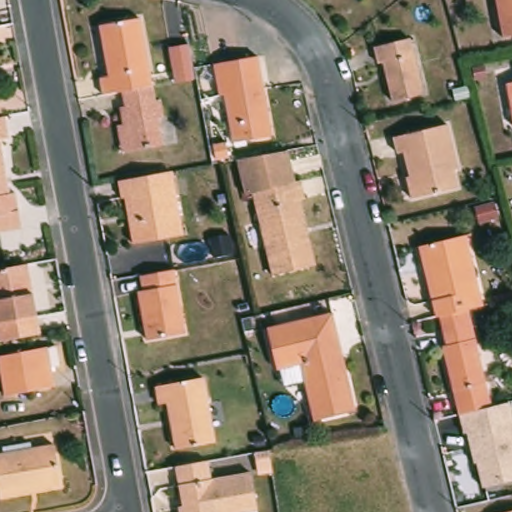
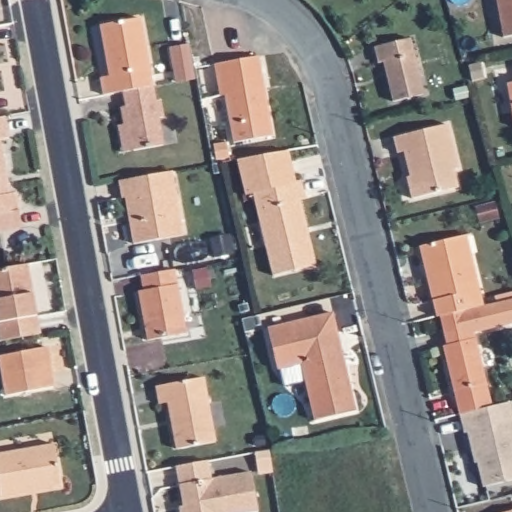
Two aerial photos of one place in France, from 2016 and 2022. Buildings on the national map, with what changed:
unchanged [(497,0),(512,0),(512,39),(505,40),(497,0)]
unchanged [(103,80),(112,78),(101,28),(140,19),(155,86),(126,93),(107,96),(103,80)]
unchanged [(177,81),(170,46),(190,42),(196,77),(177,81)]
unchanged [(395,105),(387,76),(383,77),(376,51),(412,42),(425,98),(395,105)]
unchanged [(237,146),(229,99),(224,100),(217,69),(260,60),(277,138),(237,146)]
unchanged [(512,82),(512,104),(508,83),(512,82)]
unchanged [(159,101),(163,99),(168,118),(162,119),(168,145),(139,151),(133,125),(127,126),(124,109),(130,107),(126,93),(155,86),(159,101)]
unchanged [(5,232),(0,233),(0,119),(8,117),(12,139),(3,140),(12,191),(13,194),(19,193),(22,211),(25,228),(5,232)]
unchanged [(406,176),(410,175),(404,148),(396,150),(393,137),(450,124),(460,167),(454,169),(459,187),(411,197),(406,176)]
unchanged [(287,150),(295,187),(255,196),(245,198),(237,159),(287,150)]
unchanged [(185,236),(137,247),(131,221),(135,220),(130,198),(124,199),(120,182),(171,172),(185,236)]
unchanged [(303,185),(307,202),(301,204),(316,268),(275,279),(255,196),(303,185)]
unchanged [(422,247),(459,239),(467,237),(471,255),(483,305),(465,310),(440,315),(438,316),(435,301),(427,268),(422,247)]
unchanged [(0,326),(0,271),(29,265),(42,333),(3,341),(0,326)]
unchanged [(187,337),(149,345),(139,296),(145,295),(141,278),(175,272),(187,337)]
unchanged [(460,414),(454,389),(442,346),(446,344),(440,315),(465,310),(471,338),(475,337),(485,381),(491,406),(491,407),(460,414)]
unchanged [(303,364),(280,369),(270,328),(335,313),(340,330),(350,375),(358,410),(316,420),(303,364)]
unchanged [(54,389),(3,398),(0,382),(0,359),(46,349),(54,389)]
unchanged [(175,451),(165,404),(157,407),(153,388),(200,379),(214,444),(175,451)]
unchanged [(498,443),(502,461),(508,484),(512,499),(481,507),(468,450),(498,443)]
unchanged [(62,489),(0,500),(0,498),(0,457),(54,446),(62,489)]
unchanged [(250,459),(263,457),(267,479),(255,481),(250,459)]
unchanged [(184,509),(175,469),(205,464),(209,480),(248,472),(256,511),(254,512),(179,512),(179,510),(184,509)]

